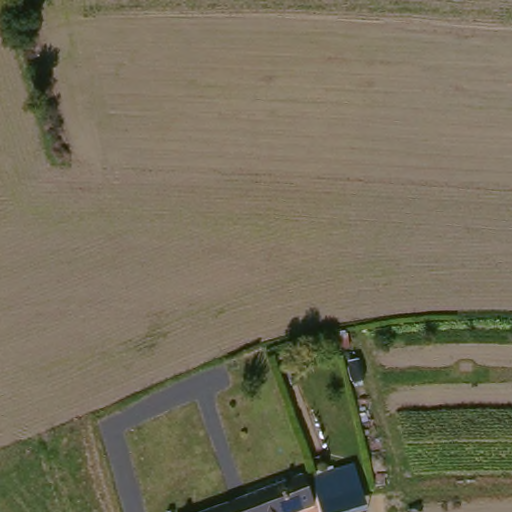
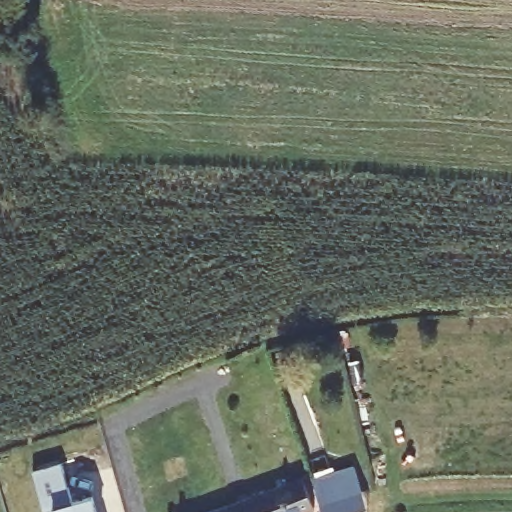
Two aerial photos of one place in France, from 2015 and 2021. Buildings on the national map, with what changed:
new [(72,501),(93,495),(98,512),(54,512),(52,508),(45,511),(33,471),(61,464),(72,501)]
unchanged [(340,465),(349,488),(316,502),(306,480),(340,465)]
unchanged [(297,512),(219,512),(218,510),(296,476),(307,507),(297,512)]
unchanged [(218,510),(219,512),(215,512),(218,510)]

